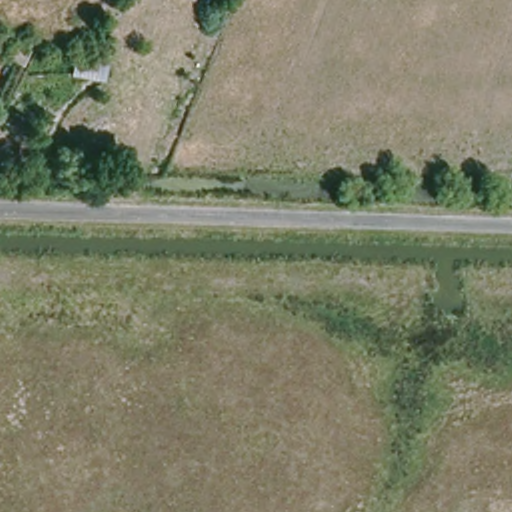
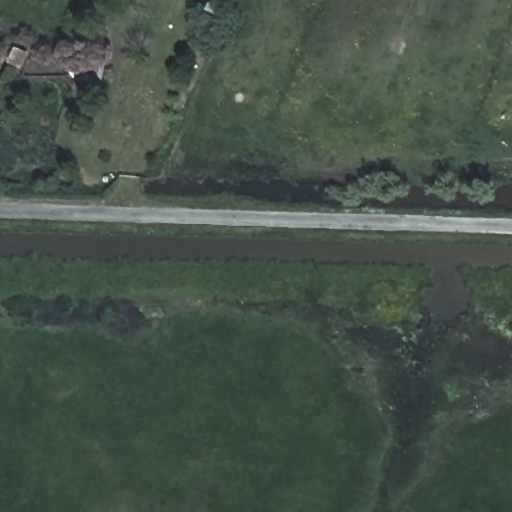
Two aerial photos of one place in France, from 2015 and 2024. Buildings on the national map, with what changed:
unchanged [(13,61),(19,50),(28,54),(23,64),(13,61)]

